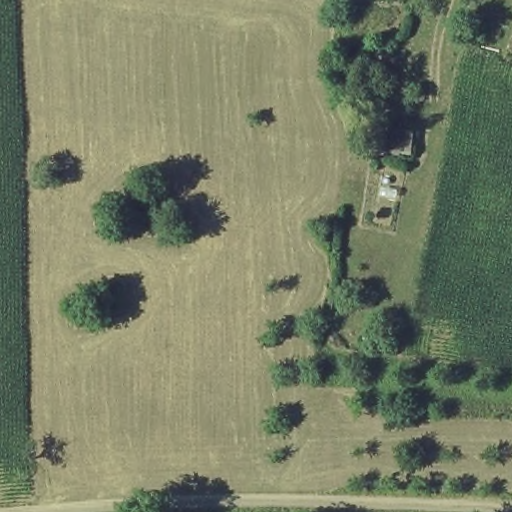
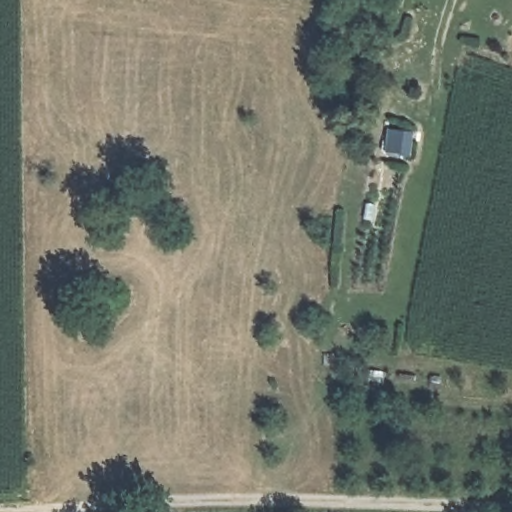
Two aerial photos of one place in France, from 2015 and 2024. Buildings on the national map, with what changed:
unchanged [(414,131),(411,166),(385,164),(391,129),(414,131)]

